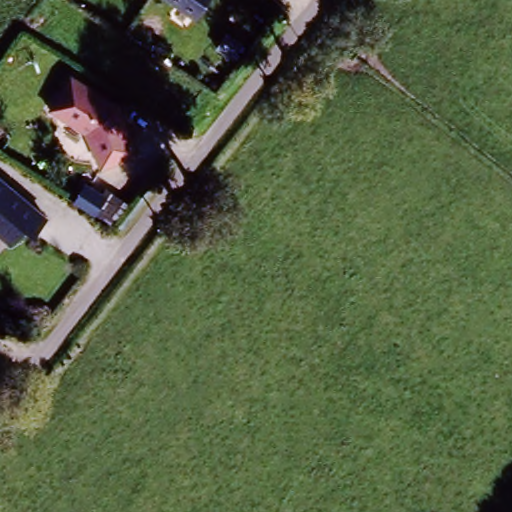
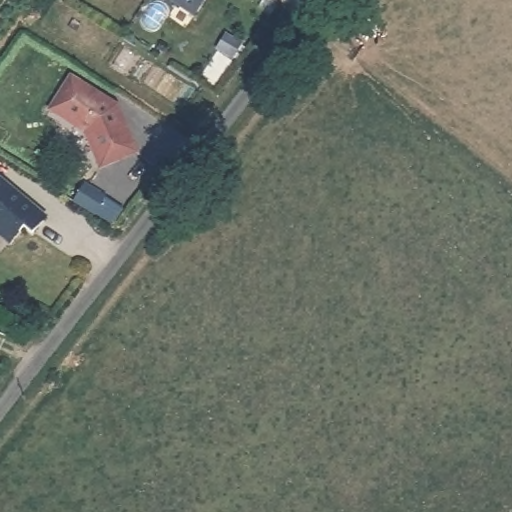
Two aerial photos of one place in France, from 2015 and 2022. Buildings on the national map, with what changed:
unchanged [(176,0),(211,0),(200,17),(176,0)]
unchanged [(123,106),(143,155),(102,167),(85,130),(52,108),(74,76),(123,106)]
unchanged [(0,172),(52,216),(17,246),(0,231),(0,172)]

